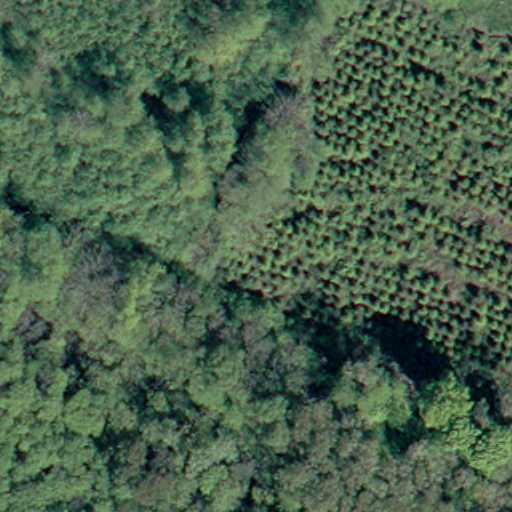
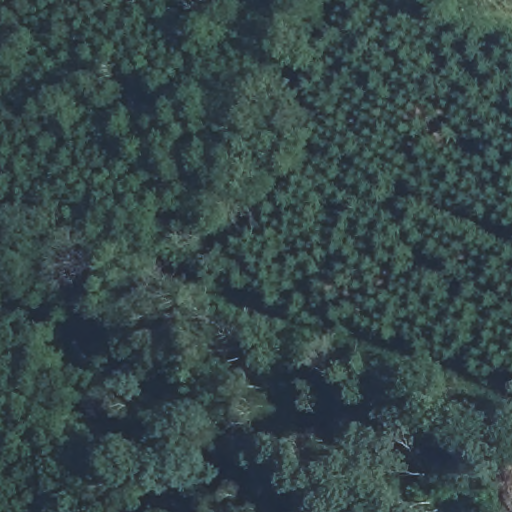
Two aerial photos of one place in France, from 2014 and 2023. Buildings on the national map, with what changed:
[]

